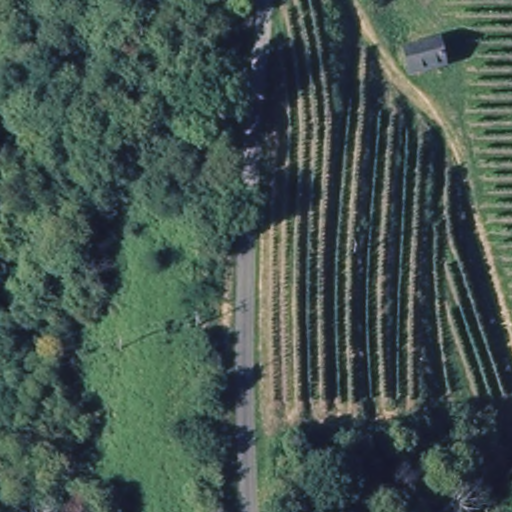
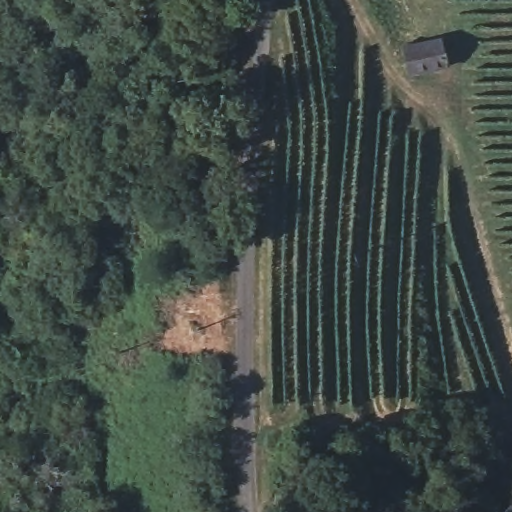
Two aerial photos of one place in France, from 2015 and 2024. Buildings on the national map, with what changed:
unchanged [(436,47),(441,65),(409,71),(405,55),(436,47)]

